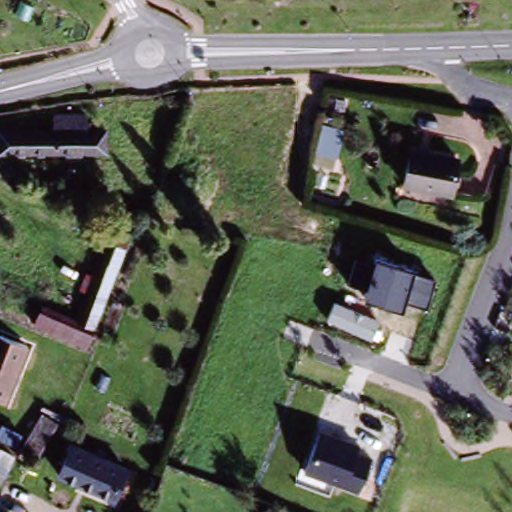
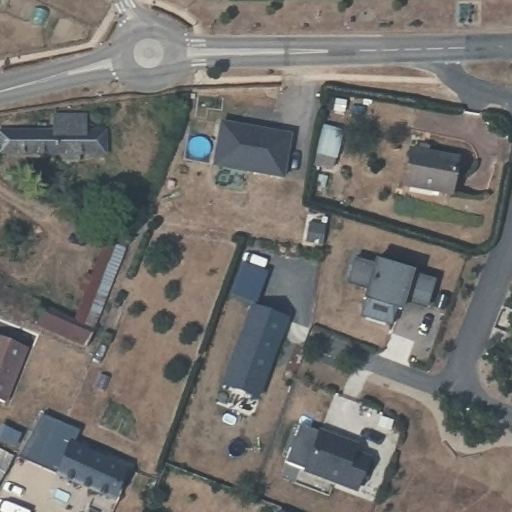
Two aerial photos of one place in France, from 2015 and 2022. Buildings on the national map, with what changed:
unchanged [(47,136),(47,119),(80,116),(82,133),(99,132),(100,156),(1,160),(0,138),(47,136)]
new [(292,134),(284,178),(212,164),(220,121),(292,134)]
unchanged [(447,168),(442,199),(397,190),(402,159),(447,168)]
unchanged [(130,242),(85,350),(34,330),(42,311),(73,322),(110,233),(130,242)]
unchanged [(426,308),(405,299),(402,310),(362,298),(365,289),(346,283),(355,257),(434,281),(426,308)]
new [(252,309),(287,321),(259,399),(225,387),(252,309)]
unchanged [(5,411),(0,408),(0,345),(27,356),(5,411)]
unchanged [(39,459),(24,449),(45,416),(59,425),(39,459)]
unchanged [(357,493),(304,471),(320,429),(359,444),(357,450),(372,456),(357,493)]
unchanged [(14,471),(6,488),(0,485),(0,448),(20,457),(14,471)]
unchanged [(115,466),(105,493),(51,475),(62,448),(115,466)]
unchanged [(262,510),(270,512),(262,512),(262,510)]

